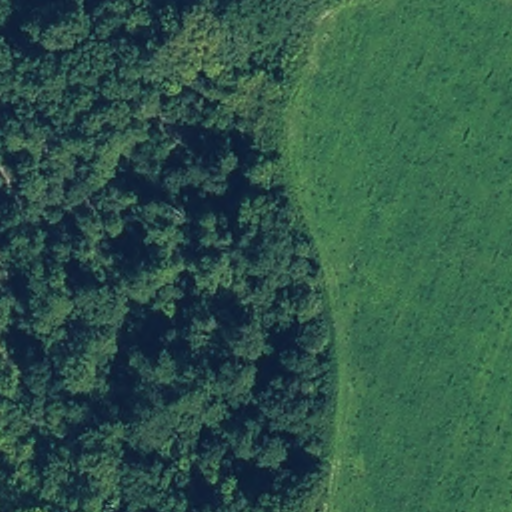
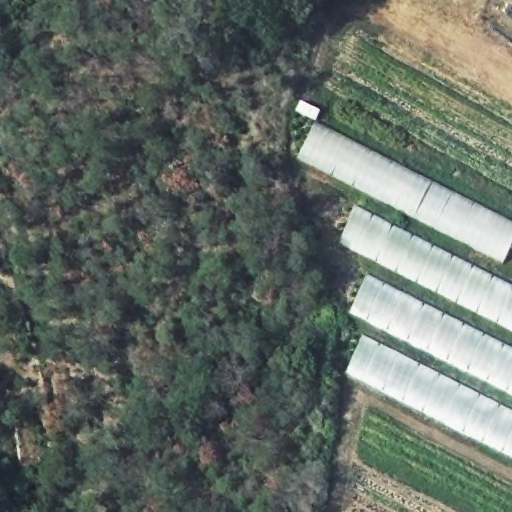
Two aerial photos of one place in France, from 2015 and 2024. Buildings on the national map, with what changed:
new [(372,261),(338,243),(358,190),(296,159),(314,122),(512,222),(512,249),(498,280),(512,287),(512,457),(344,373),(366,321),(349,312),(372,261)]

